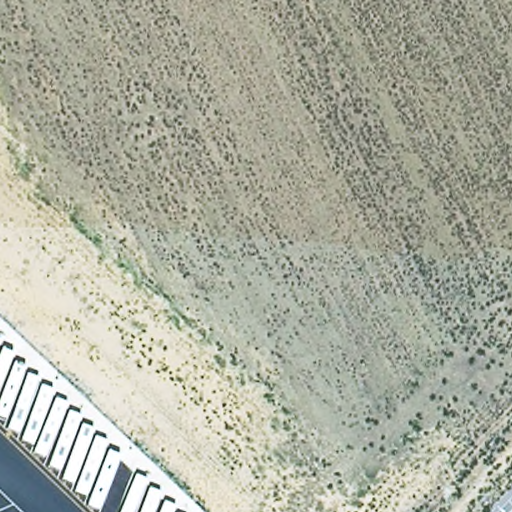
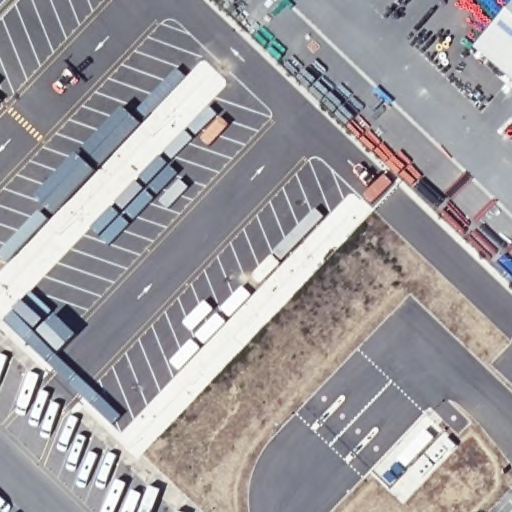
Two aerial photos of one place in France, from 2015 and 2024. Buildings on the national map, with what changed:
new [(475,48),(512,3),(512,80),(475,48)]

